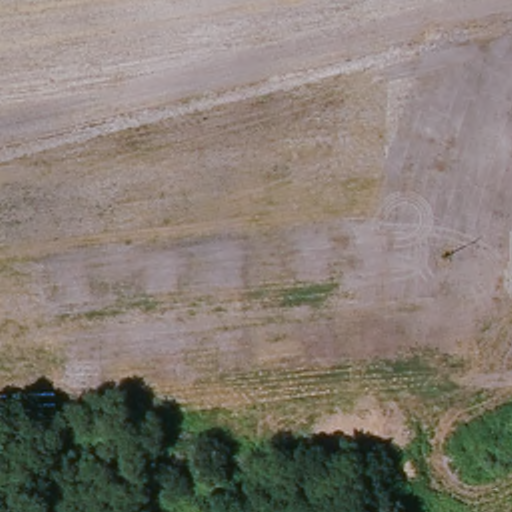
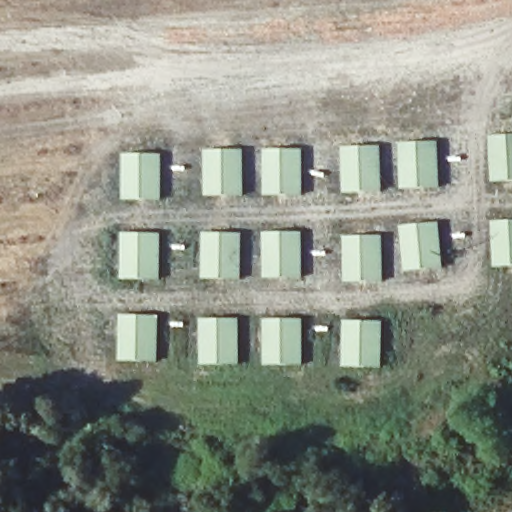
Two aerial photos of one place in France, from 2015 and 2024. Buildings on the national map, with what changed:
new [(512,134),(512,181),(491,181),(488,135),(512,134)]
new [(440,140),(443,187),(401,188),(400,142),(440,140)]
new [(382,145),(385,191),(343,192),(342,146),(382,145)]
new [(246,149),(247,195),(205,195),(204,149),(246,149)]
new [(305,149),(306,195),(263,195),(263,149),(305,149)]
new [(122,152),(164,153),(164,199),(122,199),(122,152)]
new [(512,218),(512,266),(492,267),(490,220),(512,218)]
new [(442,221),(446,268),(404,271),(400,224),(442,221)]
new [(304,230),(305,277),(263,277),(262,231),(304,230)]
new [(121,231),(163,232),(162,280),(119,279),(121,231)]
new [(202,231),(244,232),(244,278),(201,278),(202,231)]
new [(385,234),(386,280),(343,281),(343,235),(385,234)]
new [(120,313),(161,314),(160,362),(117,361),(120,313)]
new [(199,317),(241,317),(242,365),(199,365),(199,317)]
new [(304,317),(306,365),(263,365),(263,318),(304,317)]
new [(342,319),(385,320),(384,368),(341,367),(342,319)]

